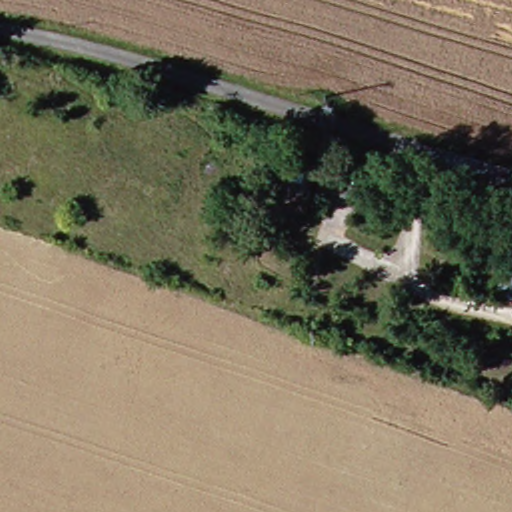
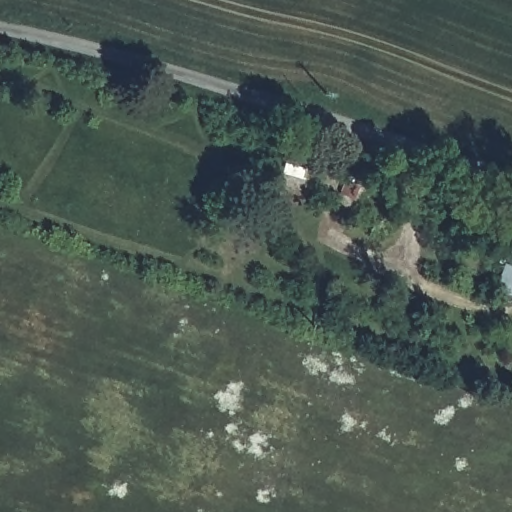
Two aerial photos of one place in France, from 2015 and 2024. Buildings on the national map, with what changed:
unchanged [(510,257),(512,258),(512,294),(503,291),(510,257)]

